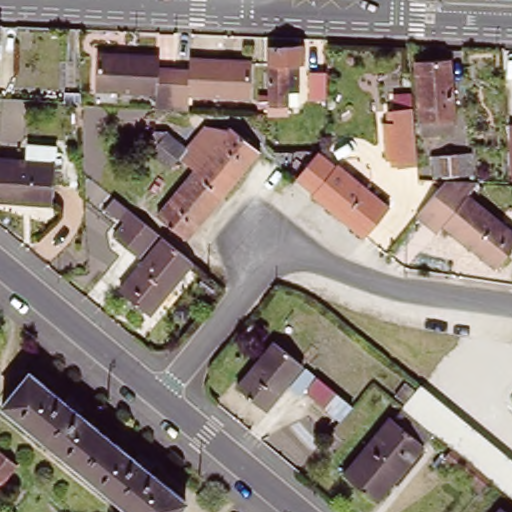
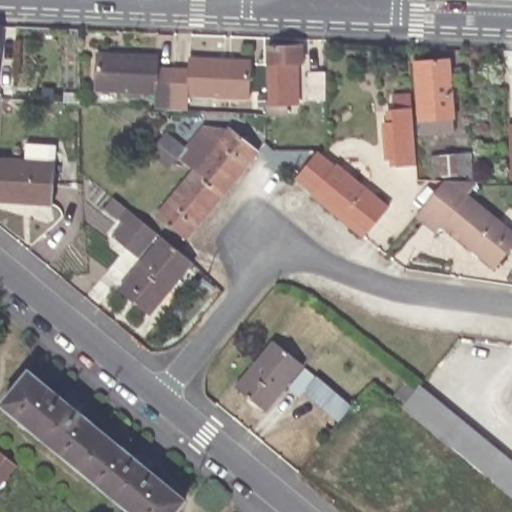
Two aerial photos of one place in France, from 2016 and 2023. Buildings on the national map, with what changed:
unchanged [(302,45),(303,62),(288,63),(290,94),(272,95),(270,46),(302,45)]
unchanged [(449,53),(455,124),(422,127),(416,55),(449,53)]
unchanged [(222,64),(247,65),(246,99),(185,97),(184,114),(167,113),(156,113),(153,113),(155,96),(92,93),(93,60),(121,61),(122,59),(153,60),(156,60),(155,73),(168,74),(185,74),(186,61),(222,62),(222,64)]
unchanged [(383,119),(390,118),(389,109),(388,95),(409,93),(411,109),(415,165),(387,164),(383,119)]
unchanged [(512,177),(511,178),(509,124),(512,124),(512,177)]
unchanged [(205,126),(226,129),(197,167),(180,155),(205,126)]
unchanged [(255,151),(221,197),(192,175),(226,129),(255,151)]
unchanged [(150,158),(158,147),(165,137),(186,152),(178,162),(170,173),(150,158)]
unchanged [(308,195),(312,192),(295,180),(318,152),(337,167),(339,164),(343,167),(350,158),(370,174),(362,185),(392,207),(363,239),(308,195)]
unchanged [(460,153),(462,173),(447,174),(446,154),(460,153)]
unchanged [(55,167),(52,209),(0,203),(0,161),(55,167)]
unchanged [(192,175),(221,197),(187,244),(157,222),(192,175)]
unchanged [(473,194),(512,226),(512,251),(500,266),(448,224),(443,229),(422,211),(448,180),(484,181),(473,194)]
unchanged [(160,238),(142,259),(116,237),(127,226),(123,223),(131,214),(160,238)]
unchanged [(165,243),(185,259),(193,266),(150,318),(122,294),(165,243)]
unchanged [(269,341),(297,364),(261,408),(232,384),(269,341)]
unchanged [(178,512),(130,512),(2,407),(30,375),(185,503),(178,512)]
unchanged [(512,498),(493,483),(472,466),(452,449),(407,412),(403,409),(422,388),(425,390),(512,462),(512,498)]
unchanged [(347,407),(340,416),(319,399),(327,391),(347,407)]
demolished [(391,419),(424,447),(377,504),(343,477),(391,419)]
unchanged [(0,483),(0,450),(5,455),(17,463),(0,483)]
demolished [(503,512),(500,512),(502,511),(503,512)]

